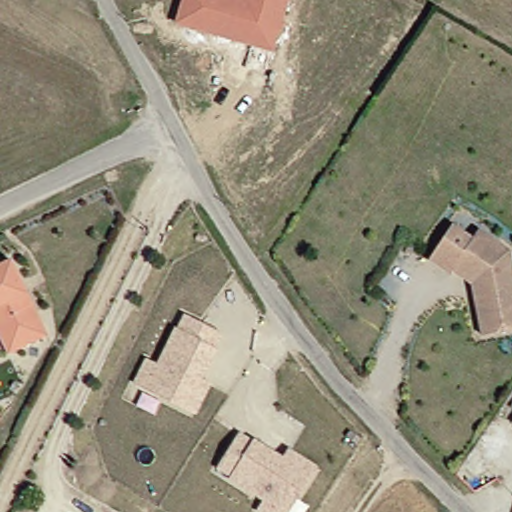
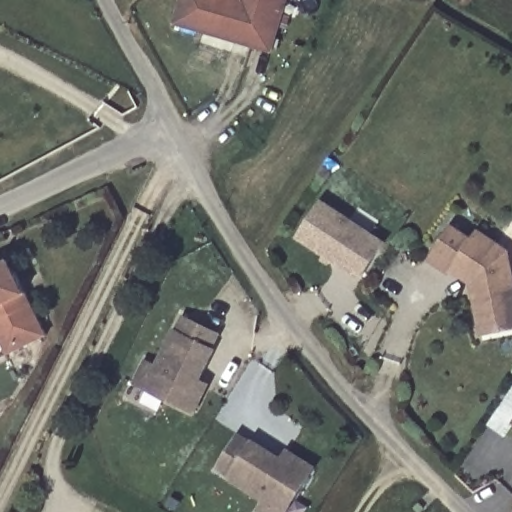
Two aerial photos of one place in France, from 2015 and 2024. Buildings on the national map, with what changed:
unchanged [(278,14),(270,48),(235,39),(235,42),(175,27),(182,0),(285,0),(281,15),(278,14)]
new [(320,204),(381,244),(358,280),(296,239),(320,204)]
unchanged [(480,335),(470,283),(450,270),(448,272),(427,258),(445,232),(466,246),(477,230),(502,246),(508,250),(512,268),(512,329),(480,335)]
unchanged [(0,335),(0,265),(10,261),(47,335),(10,354),(0,335)]
unchanged [(222,332),(200,382),(210,387),(197,412),(136,382),(145,359),(160,365),(175,329),(180,330),(185,314),(222,332)]
unchanged [(217,467),(239,435),(252,443),(254,442),(282,460),(287,452),(314,468),(308,477),(286,512),(260,512),(257,511),(264,500),(234,481),(230,478),(231,476),(217,467)]

